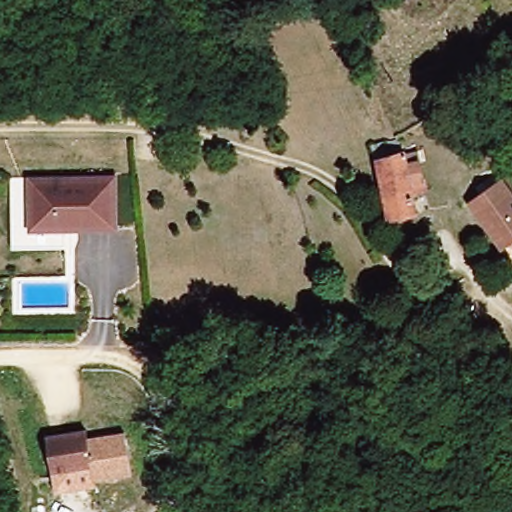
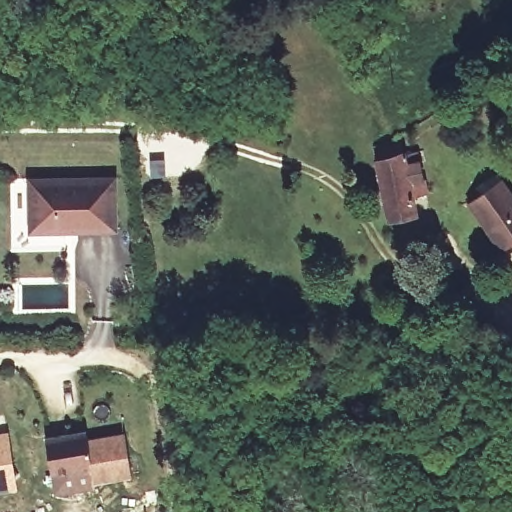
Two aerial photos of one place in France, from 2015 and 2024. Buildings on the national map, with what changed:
unchanged [(388,221),(377,162),(374,142),(395,138),(407,136),(410,165),(415,193),(429,190),(432,214),(388,221)]
unchanged [(17,197),(17,175),(124,174),(125,228),(36,229),(18,229),(17,197)]
unchanged [(468,196),(502,180),(512,196),(512,247),(502,252),(468,196)]
new [(8,431),(13,462),(12,491),(0,492),(0,432),(8,431)]
unchanged [(50,475),(45,440),(85,433),(87,442),(125,436),(130,478),(92,483),(53,489),(50,475)]

